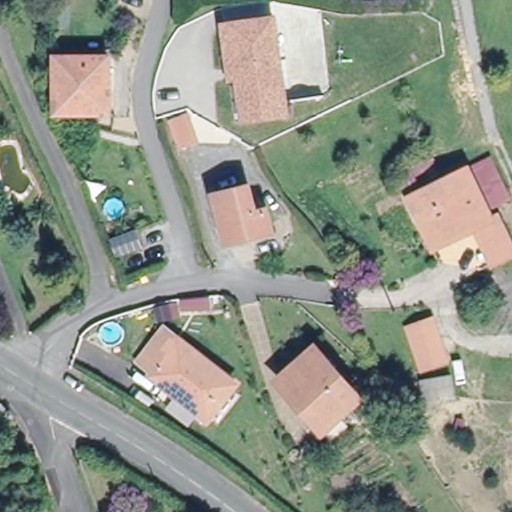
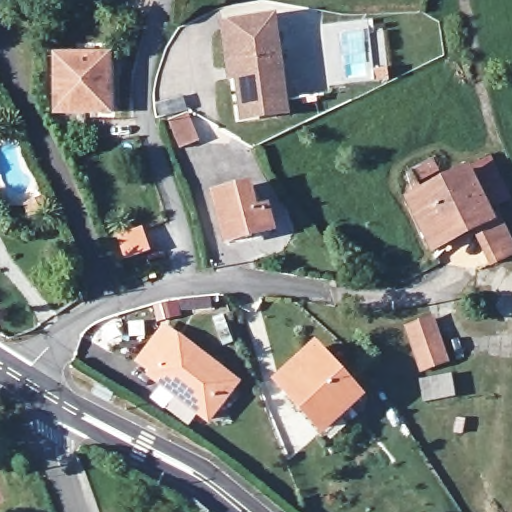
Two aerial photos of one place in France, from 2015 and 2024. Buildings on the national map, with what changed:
unchanged [(241,121),(240,110),(237,80),(229,81),(227,65),(223,28),(274,22),(283,106),(284,117),(241,121)]
unchanged [(109,113),(56,114),(55,60),(108,59),(109,113)]
unchanged [(193,114),(201,139),(176,148),(170,119),(193,114)]
unchanged [(444,239),(434,244),(409,194),(420,189),(491,155),(509,194),(492,202),(497,213),(512,244),(512,253),(494,261),(476,223),(444,239)]
unchanged [(270,229),(226,240),(216,198),(250,189),(256,214),(266,211),(270,229)]
unchanged [(408,326),(431,317),(447,357),(424,366),(408,326)]
unchanged [(230,384),(203,419),(147,377),(150,374),(137,364),(161,332),(230,384)]
unchanged [(277,382),(314,348),(360,399),(322,433),(277,382)]
unchanged [(455,376),(457,400),(423,404),(422,382),(455,376)]

